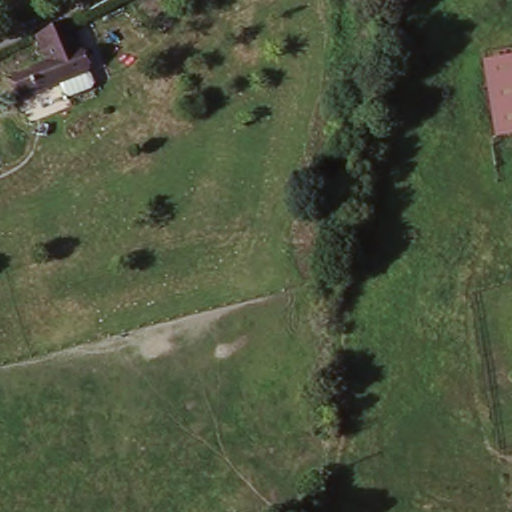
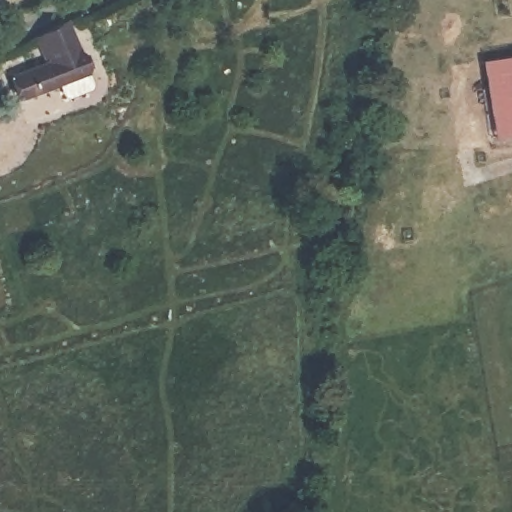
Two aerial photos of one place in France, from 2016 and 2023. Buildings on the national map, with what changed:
unchanged [(67,24),(91,96),(64,105),(56,84),(15,99),(6,73),(41,63),(37,38),(67,24)]
unchanged [(480,68),(512,62),(512,139),(495,143),(480,68)]

